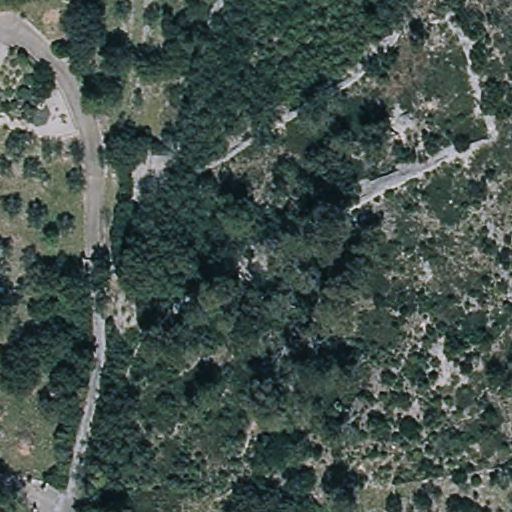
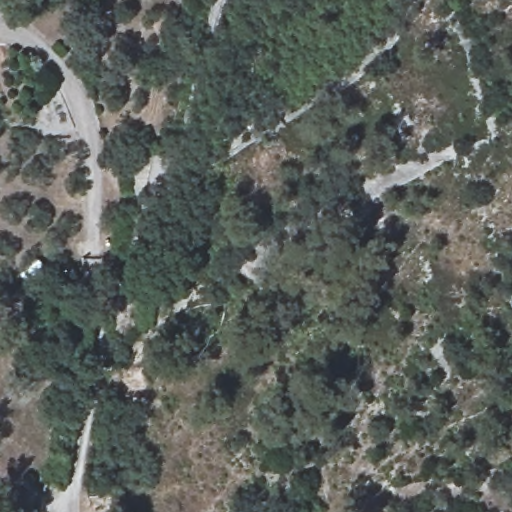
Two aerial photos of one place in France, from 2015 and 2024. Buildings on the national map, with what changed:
[]

